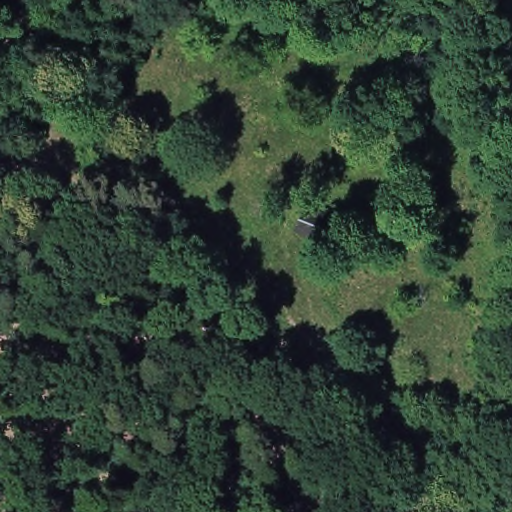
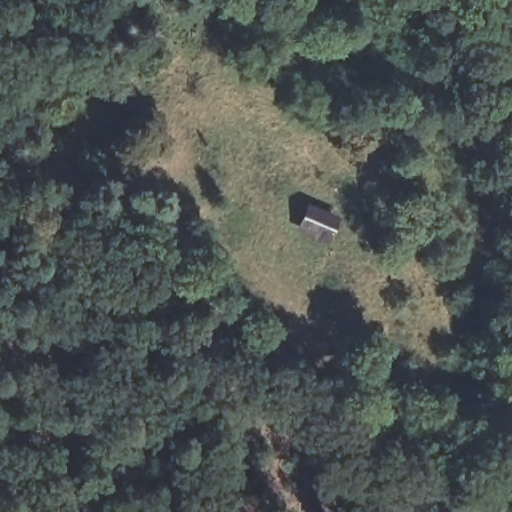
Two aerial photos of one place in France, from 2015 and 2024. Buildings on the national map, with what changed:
unchanged [(310,205),(336,219),(327,241),(297,229),(310,205)]

